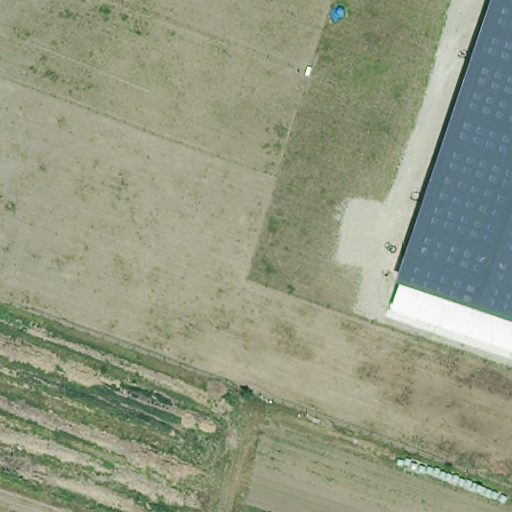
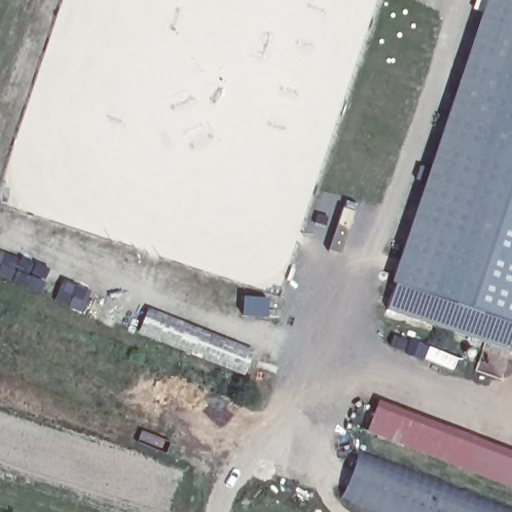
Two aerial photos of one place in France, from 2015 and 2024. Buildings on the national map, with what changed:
unchanged [(512,0),(512,352),(385,310),(392,281),(487,0),(512,0)]
new [(512,452),(512,491),(366,434),(379,403),(512,452)]
new [(512,509),(512,512),(365,512),(340,502),(360,447),(512,509)]

